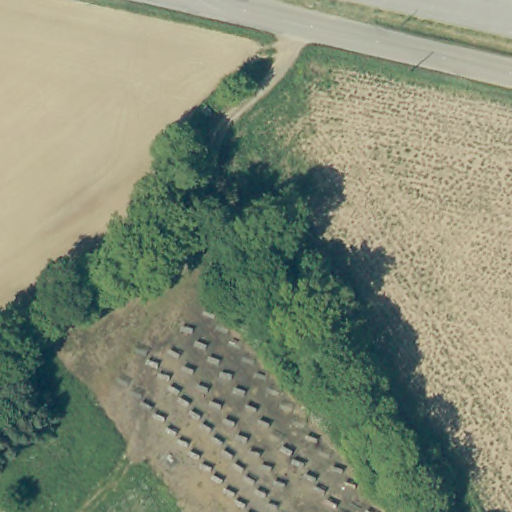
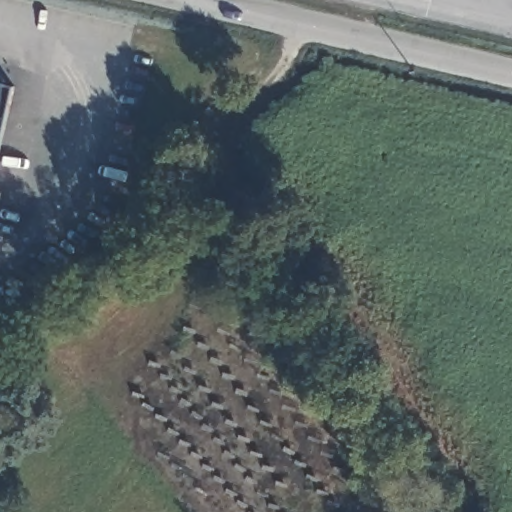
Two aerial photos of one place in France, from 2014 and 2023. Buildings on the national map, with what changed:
new [(0,83),(14,86),(0,147),(0,83)]

